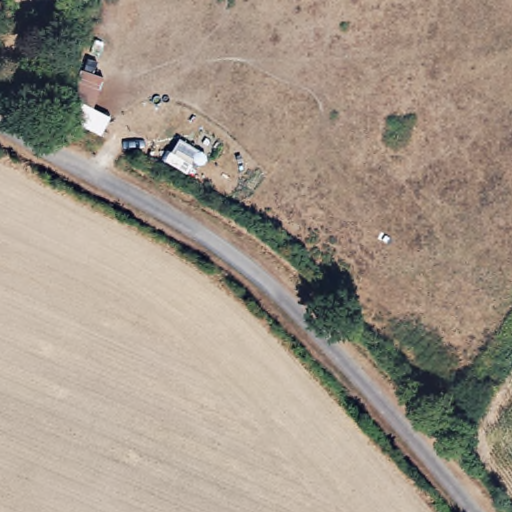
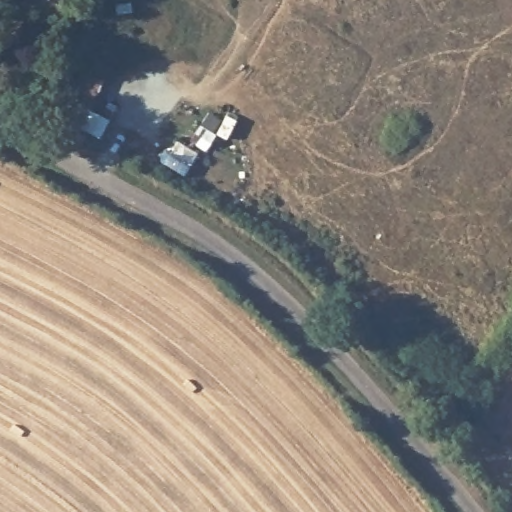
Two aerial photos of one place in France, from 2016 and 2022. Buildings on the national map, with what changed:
unchanged [(78,77),(101,89),(90,114),(110,126),(97,148),(57,126),(78,77)]

